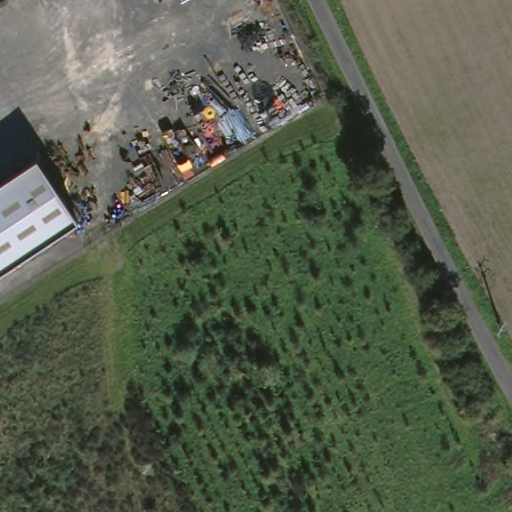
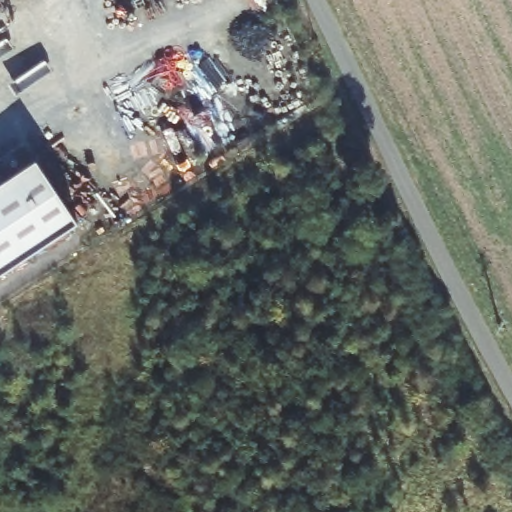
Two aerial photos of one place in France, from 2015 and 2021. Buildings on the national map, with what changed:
unchanged [(0,272),(0,183),(41,156),(84,220),(0,272)]

